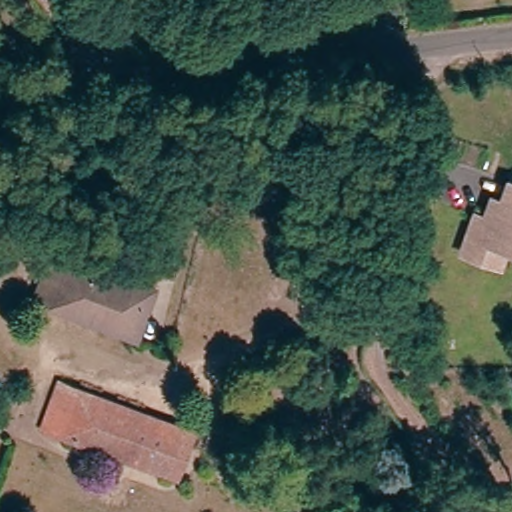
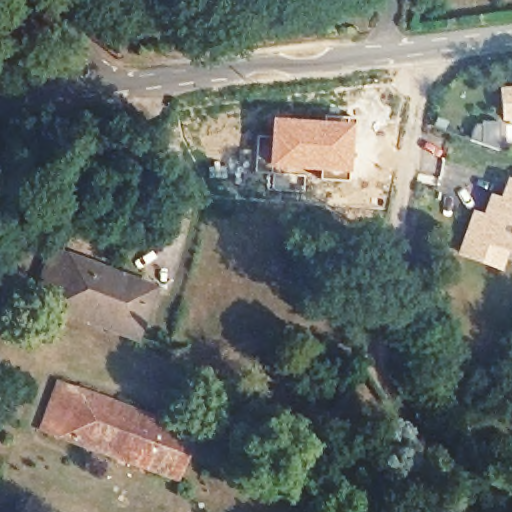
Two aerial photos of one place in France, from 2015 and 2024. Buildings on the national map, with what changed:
new [(512,88),(512,122),(503,123),(499,89),(512,88)]
new [(261,170),(267,116),(351,121),(346,176),(311,175),(307,175),(305,193),(267,189),(269,171),(261,170)]
unchanged [(509,261),(471,246),(486,207),(496,211),(502,194),(511,197),(497,234),(512,240),(512,253),(509,261)]
unchanged [(497,234),(511,197),(512,195),(512,240),(497,234)]
unchanged [(104,332),(44,308),(31,302),(40,274),(54,279),(63,255),(150,292),(129,343),(104,332)]
unchanged [(19,361),(35,368),(29,383),(13,378),(19,361)]
unchanged [(40,433),(39,433),(57,388),(73,394),(193,442),(177,482),(175,488),(54,439),(40,433)]

